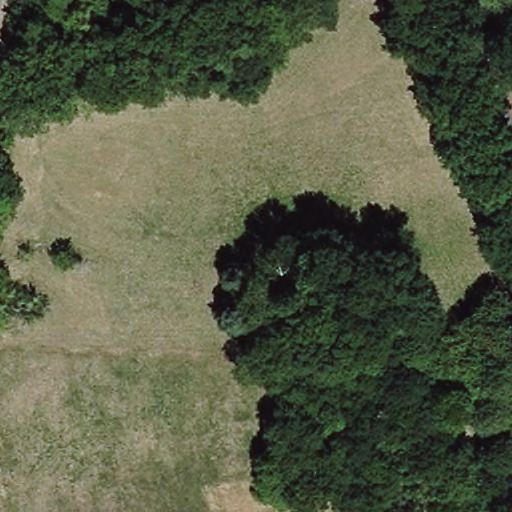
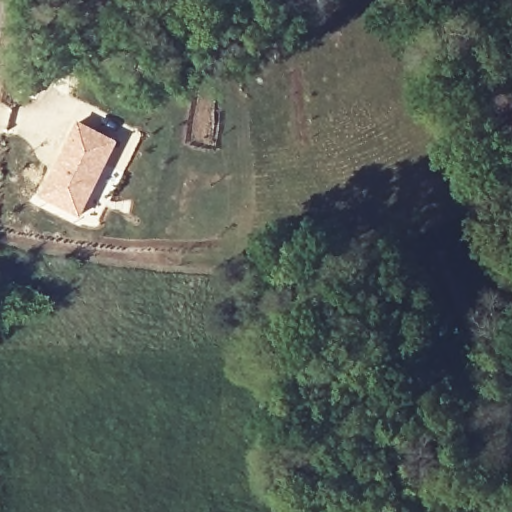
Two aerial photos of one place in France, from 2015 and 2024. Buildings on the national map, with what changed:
new [(80,120),(121,139),(79,220),(33,199),(80,120)]

